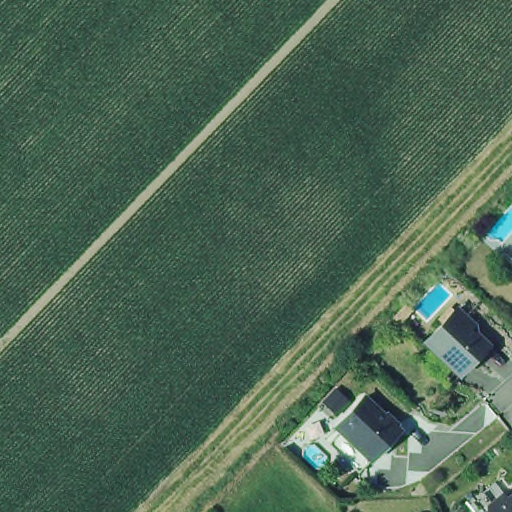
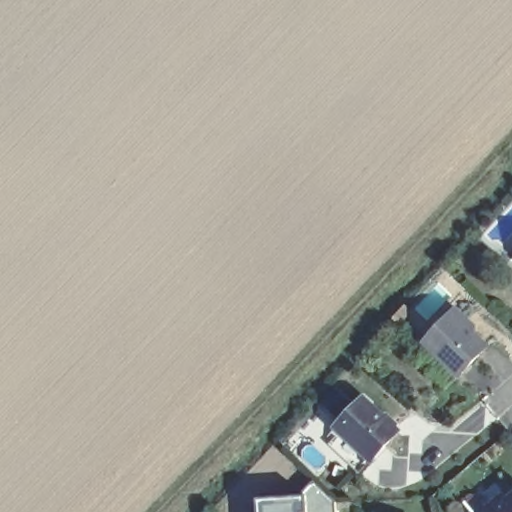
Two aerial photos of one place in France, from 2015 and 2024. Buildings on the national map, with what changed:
unchanged [(473,324),(474,331),(488,345),(460,374),(425,341),(457,308),(473,324)]
unchanged [(400,430),(372,459),(337,425),(364,396),(400,430)]
new [(295,495),(300,495),(314,481),(333,500),(334,512),(257,512),(256,499),(295,495)]
unchanged [(493,511),(489,505),(503,494),(507,500),(512,496),(512,512),(492,512),(493,511)]

